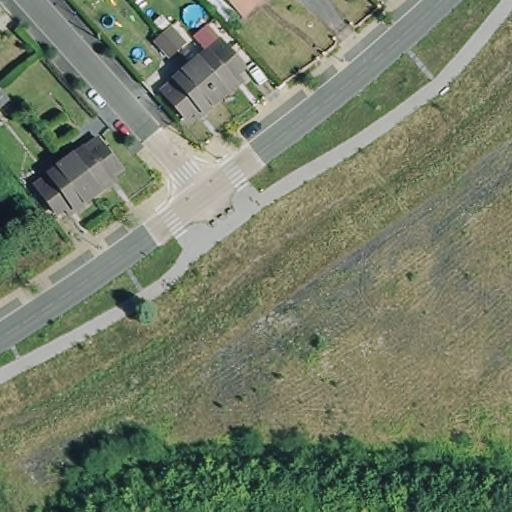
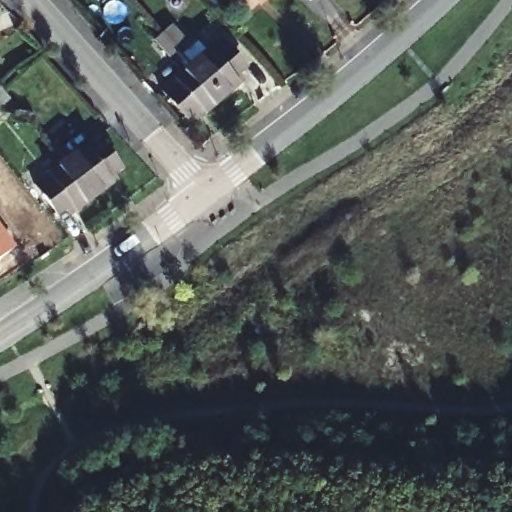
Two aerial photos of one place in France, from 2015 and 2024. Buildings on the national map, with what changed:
unchanged [(227,0),(260,0),(243,16),(227,0)]
unchanged [(158,41),(166,34),(173,26),(188,42),(180,50),(173,57),(158,41)]
unchanged [(198,75),(212,64),(209,61),(225,49),(251,80),(237,91),(241,96),(226,109),(198,75)]
unchanged [(226,109),(208,125),(203,118),(192,128),(166,99),(181,86),(183,88),(198,75),(226,109)]
unchanged [(0,109),(0,90),(9,101),(0,109)]
unchanged [(68,164),(84,151),(81,148),(98,136),(121,169),(107,179),(111,185),(93,199),(68,164)]
unchanged [(93,199),(69,217),(65,212),(58,217),(35,184),(34,184),(49,173),(51,176),(68,164),(93,199)]
new [(0,258),(0,225),(15,247),(0,258)]

